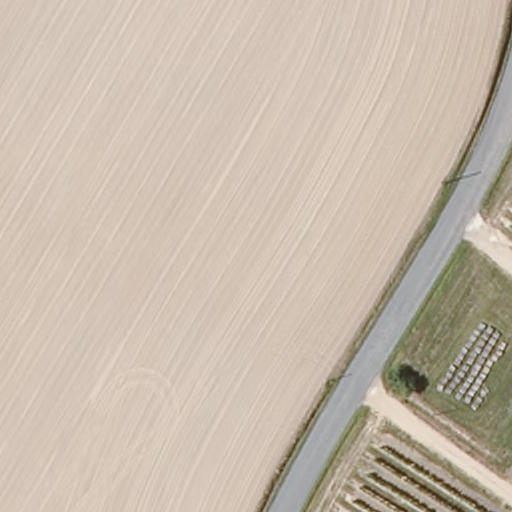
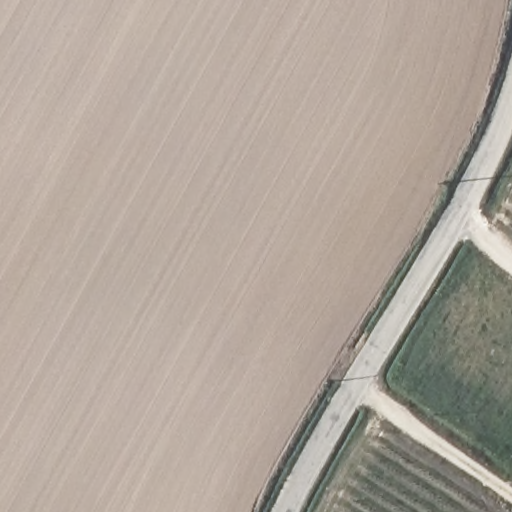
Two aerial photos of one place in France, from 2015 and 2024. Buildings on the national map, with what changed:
[]

